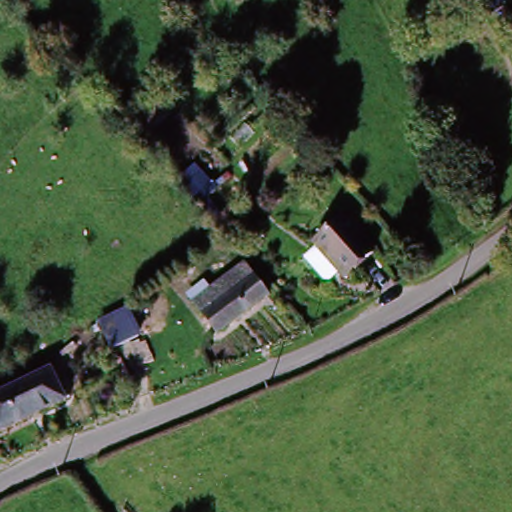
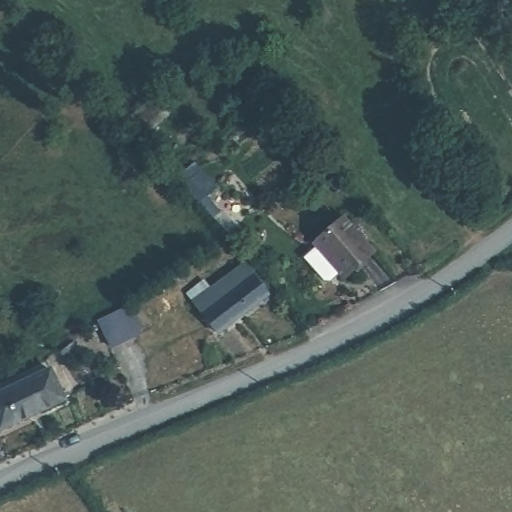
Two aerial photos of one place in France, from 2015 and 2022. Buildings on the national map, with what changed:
unchanged [(305,263),(318,251),(314,247),(343,219),(373,251),(344,279),(339,274),(327,285),(305,263)]
unchanged [(268,297),(216,336),(194,308),(243,270),(268,297)]
unchanged [(115,348),(100,322),(126,308),(141,334),(115,348)]
unchanged [(51,372),(63,401),(0,429),(0,395),(51,372)]

